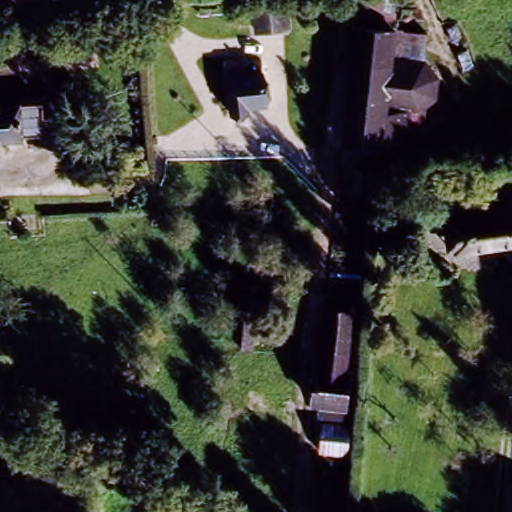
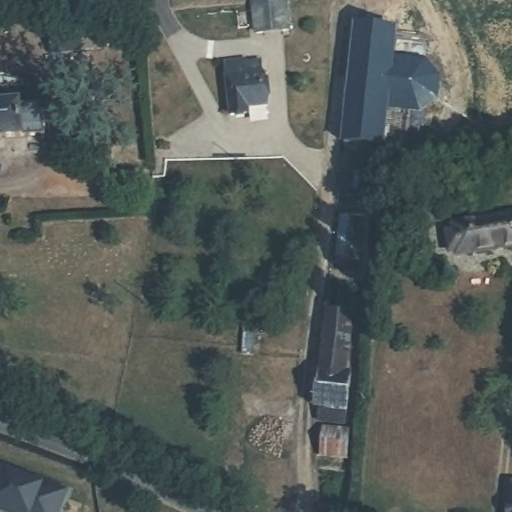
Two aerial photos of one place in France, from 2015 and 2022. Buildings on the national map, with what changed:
unchanged [(408,122),(406,141),(392,140),(383,140),(384,114),(347,112),(356,31),(356,9),(357,0),(395,0),(394,7),(392,34),(427,36),(424,63),(434,73),(431,104),(408,122)]
unchanged [(252,37),(250,7),(283,4),(285,36),(252,37)]
unchanged [(56,57),(54,34),(75,31),(74,24),(84,24),(87,54),(56,57)]
unchanged [(264,55),(270,105),(252,106),(253,117),(231,119),(222,59),(264,55)]
unchanged [(41,105),(43,136),(5,140),(6,153),(0,154),(0,109),(41,105)]
unchanged [(383,145),(346,143),(347,112),(384,114),(383,140),(383,145)]
unchanged [(512,240),(452,251),(447,223),(512,211),(512,240)]
unchanged [(346,374),(353,375),(349,421),(321,418),(332,302),(363,305),(361,323),(351,323),(346,374)]
unchanged [(349,461),(320,458),(322,433),(352,436),(349,461)]
new [(65,486),(56,512),(13,512),(0,507),(0,461),(65,486)]

